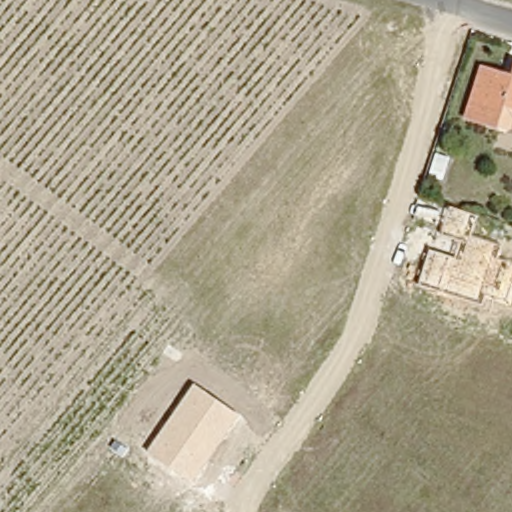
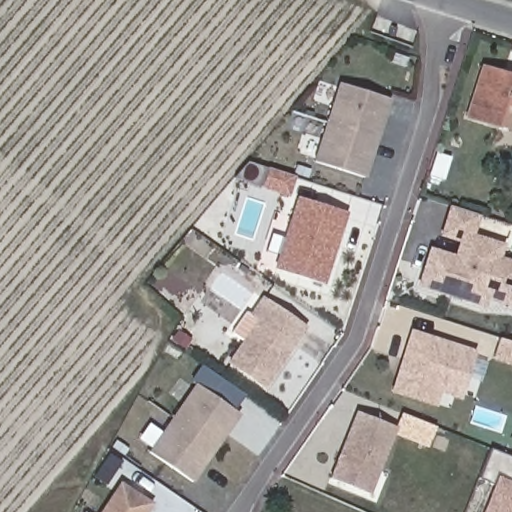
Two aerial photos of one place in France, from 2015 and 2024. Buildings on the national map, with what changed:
unchanged [(512,68),(512,108),(505,106),(500,121),(467,111),(484,61),(511,71),(512,68)]
new [(338,84),(391,100),(365,178),(312,161),(338,84)]
new [(348,213),(325,285),(274,269),(296,198),(348,213)]
unchanged [(484,295),(480,307),(417,286),(428,251),(455,258),(460,243),(440,237),(449,207),(479,215),(474,236),(501,244),(498,256),(512,260),(512,299),(510,304),(484,295)]
new [(249,316),(263,298),(307,329),(264,390),(227,364),(257,321),(249,316)]
new [(461,400),(440,394),(436,407),(390,393),(410,330),(476,350),(461,400)]
unchanged [(191,484),(146,453),(193,384),(238,414),(191,484)]
new [(370,495),(329,479),(355,412),(397,427),(370,495)]
new [(490,450),(512,458),(512,478),(496,472),(491,482),(480,477),(490,450)]
new [(512,512),(483,512),(497,477),(512,483),(512,512)]
new [(119,483),(153,504),(148,512),(101,512),(119,483)]

